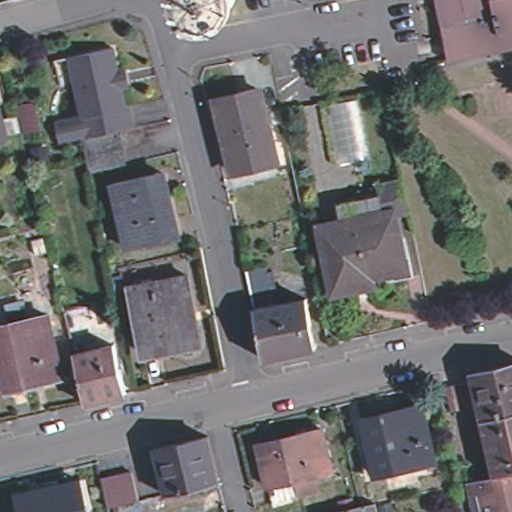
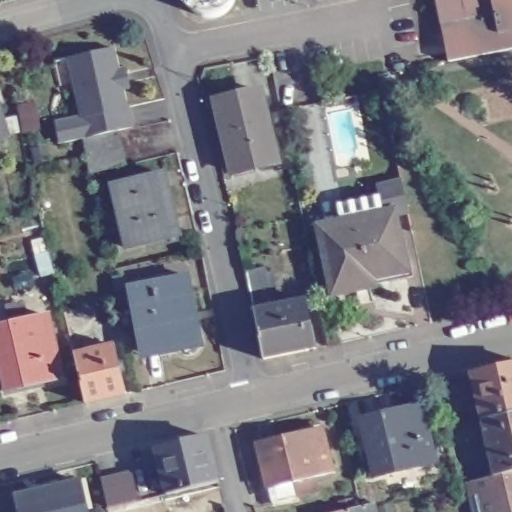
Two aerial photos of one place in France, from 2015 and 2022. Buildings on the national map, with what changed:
unchanged [(315,0),(332,0),(316,3),(315,0)]
unchanged [(437,30),(431,0),(489,0),(492,18),(437,30)]
unchanged [(445,67),(437,30),(492,18),(489,0),(512,0),(512,54),(445,67)]
unchanged [(84,137),(58,141),(55,121),(79,117),(69,59),(113,51),(117,75),(125,74),(127,89),(119,90),(122,110),(129,109),(132,130),(119,132),(122,150),(125,167),(95,172),(90,174),(89,164),(87,157),(84,137)]
unchanged [(0,135),(0,84),(12,132),(0,135)]
unchanged [(252,93),(270,165),(227,175),(210,103),(252,93)]
unchanged [(112,189),(161,179),(176,240),(125,251),(112,189)]
unchanged [(332,224),(375,217),(387,202),(397,200),(402,229),(387,232),(399,297),(328,310),(315,245),(335,241),(332,224)]
unchanged [(249,290),(245,270),(263,266),(264,272),(270,271),(274,286),(277,303),(304,298),(315,346),(263,357),(252,308),(249,290)]
unchanged [(187,282),(200,348),(197,356),(189,362),(180,360),(174,360),(160,366),(159,357),(142,359),(127,293),(187,282)]
unchanged [(76,314),(79,335),(65,337),(61,316),(76,314)]
unchanged [(0,329),(42,319),(57,382),(2,394),(0,388),(0,329)]
unchanged [(70,357),(108,349),(120,398),(80,407),(70,357)]
unchanged [(512,366),(512,416),(480,423),(469,376),(512,366)]
unchanged [(382,412),(382,416),(414,410),(420,437),(425,435),(431,460),(372,472),(360,417),(382,412)]
unchanged [(492,478),(480,423),(512,416),(512,474),(492,478)]
unchanged [(320,432),(329,475),(264,490),(255,447),(320,432)]
unchanged [(202,439),(213,486),(162,498),(150,451),(202,439)]
unchanged [(127,473),(135,504),(105,511),(98,481),(127,473)]
unchanged [(464,485),(492,478),(512,474),(512,512),(470,512),(467,498),(464,485)]
unchanged [(78,483),(85,512),(16,512),(13,498),(78,483)]
unchanged [(359,509),(374,506),(375,512),(347,512),(359,509)]

